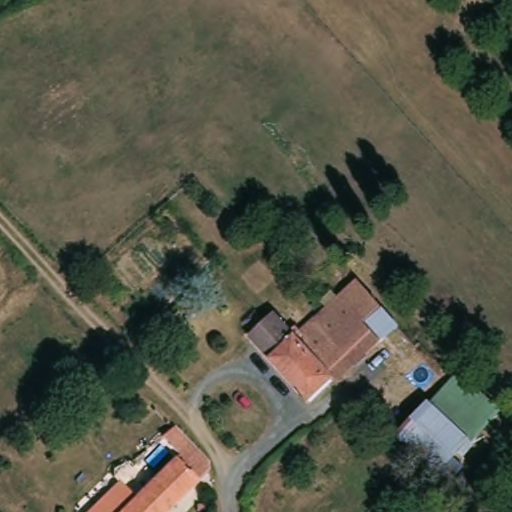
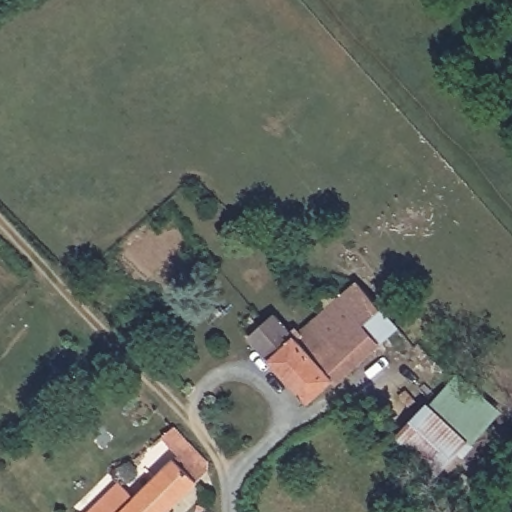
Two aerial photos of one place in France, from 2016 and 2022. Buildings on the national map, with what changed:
unchanged [(266,311),(282,330),(287,325),(294,332),(350,280),(355,285),(410,345),(385,365),(368,347),(329,381),(326,378),(302,400),(241,335),(266,311)]
unchanged [(436,471),(400,435),(451,383),(460,375),(497,410),(483,423),(436,471)]
unchanged [(135,497),(153,477),(143,467),(166,441),(157,432),(169,420),(190,443),(204,455),(204,465),(161,512),(91,512),(118,482),(135,497)]

